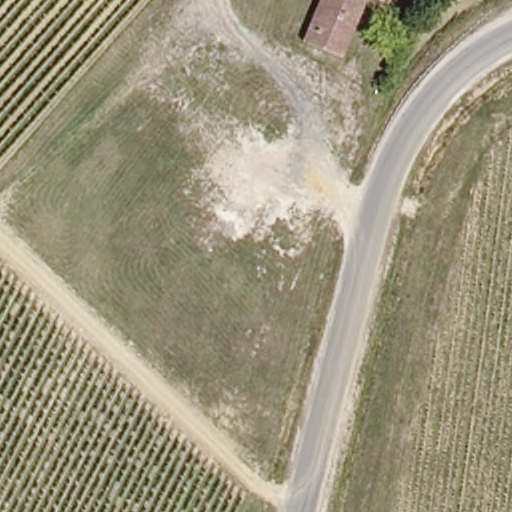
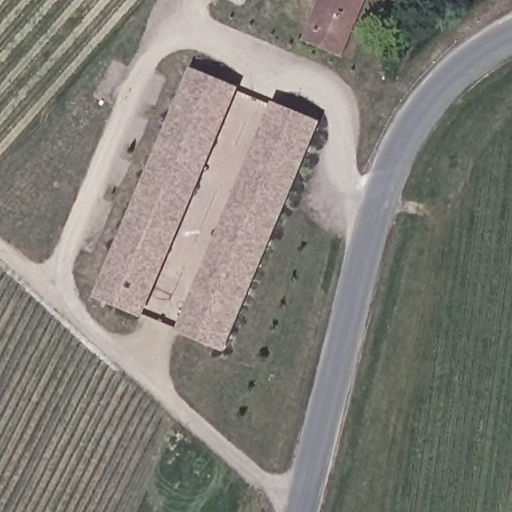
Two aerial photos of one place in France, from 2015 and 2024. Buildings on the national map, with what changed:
unchanged [(297,38),(312,0),(358,0),(335,53),(297,38)]
new [(143,318),(94,298),(191,68),(240,88),(143,318)]
new [(175,332),(272,102),(321,122),(224,352),(175,332)]

